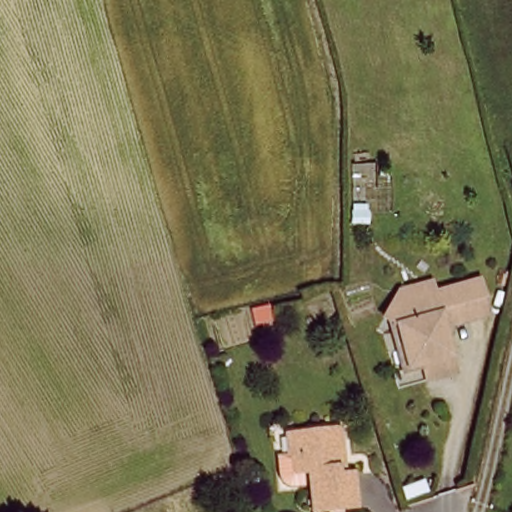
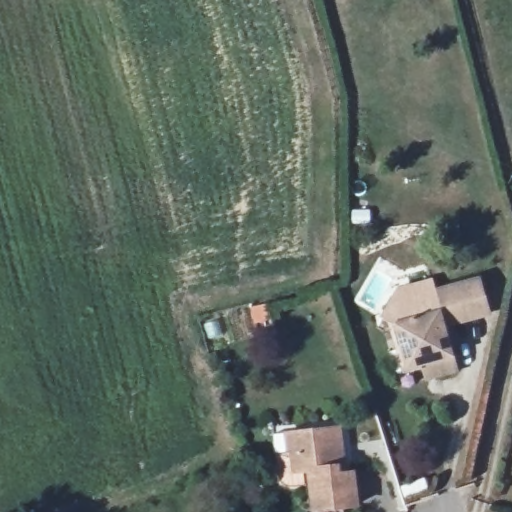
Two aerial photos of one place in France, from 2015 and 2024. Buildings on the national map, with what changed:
unchanged [(435,365),(419,370),(409,373),(395,331),(406,327),(387,316),(405,288),(434,278),(439,292),(484,277),(492,303),(454,315),(466,355),(472,375),(442,383),(435,365)]
unchanged [(345,461),(357,460),(359,509),(326,512),(314,512),(310,471),(291,475),(288,433),(343,429),(345,461)]

